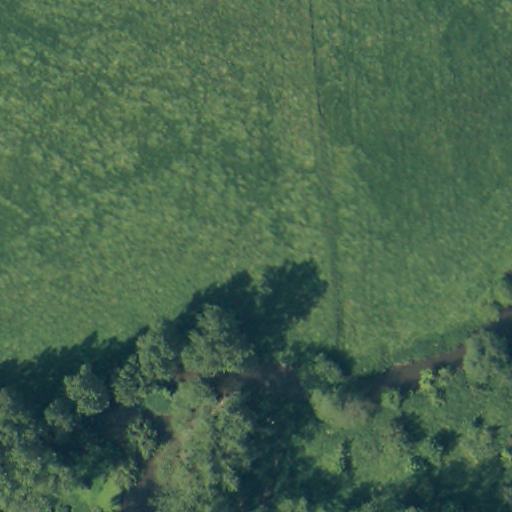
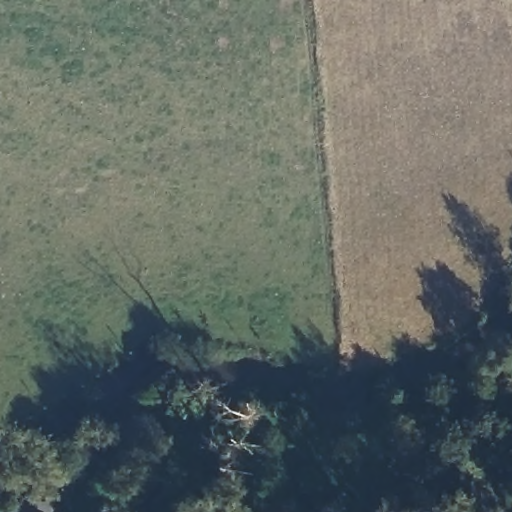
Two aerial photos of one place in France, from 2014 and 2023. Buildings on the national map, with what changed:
unchanged [(42,503),(42,512),(17,512),(18,500),(42,503)]

